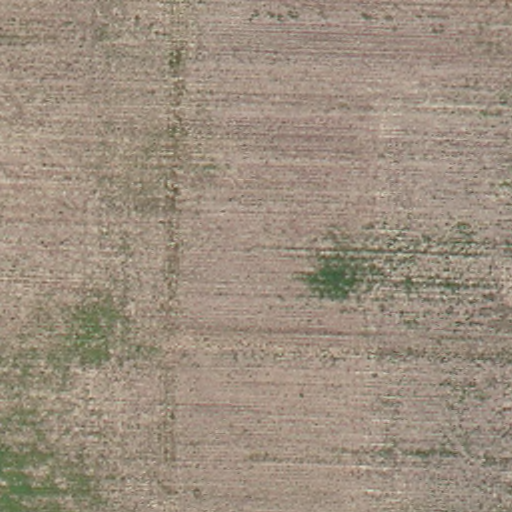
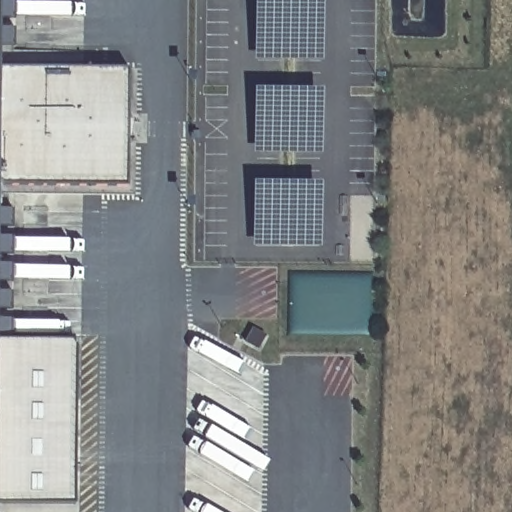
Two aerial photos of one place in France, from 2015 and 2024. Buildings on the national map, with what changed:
new [(254,0),(322,0),(322,61),(254,61),(254,0)]
new [(128,185),(0,182),(0,68),(129,69),(128,185)]
new [(253,154),(253,90),(322,90),(322,154),(253,154)]
new [(252,248),(252,183),(321,183),(321,248),(252,248)]
new [(75,503),(0,504),(0,340),(77,340),(75,503)]

